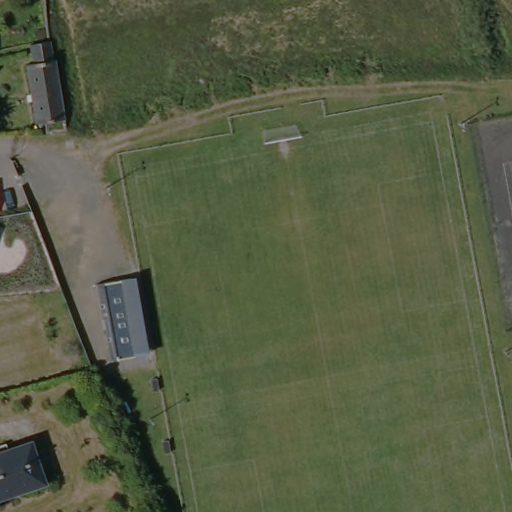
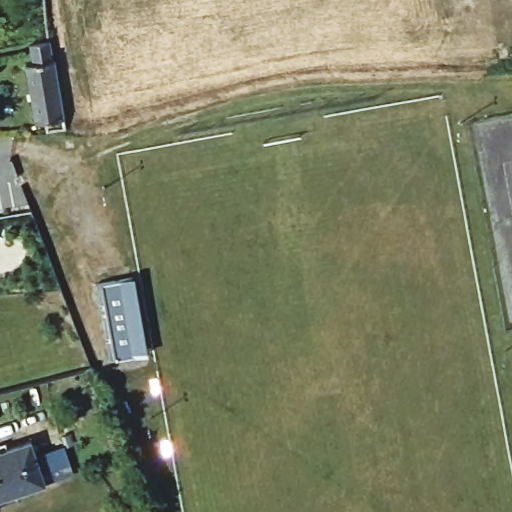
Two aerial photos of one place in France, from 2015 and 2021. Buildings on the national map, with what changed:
unchanged [(44,116),(36,117),(25,59),(33,57),(31,46),(51,43),(67,122),(46,125),(44,116)]
unchanged [(119,278),(132,274),(148,348),(135,351),(111,356),(96,283),(119,278)]
unchanged [(43,488),(0,502),(0,455),(29,445),(43,488)]

